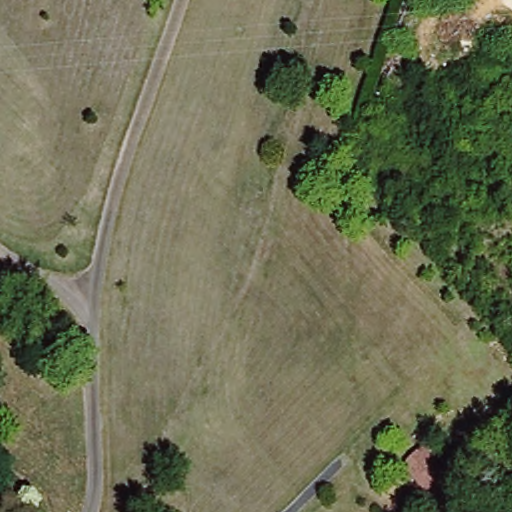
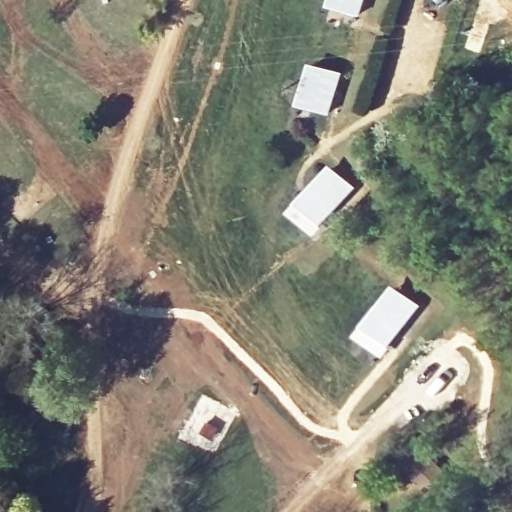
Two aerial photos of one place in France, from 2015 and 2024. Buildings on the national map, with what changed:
new [(326,6),(328,0),(364,0),(360,16),(326,6)]
new [(342,72),(330,113),(295,102),(307,62),(342,72)]
new [(329,163),(355,187),(318,228),(292,204),(329,163)]
new [(418,304),(386,346),(360,325),(393,284),(418,304)]
unchanged [(444,475),(423,497),(398,472),(419,450),(444,475)]
unchanged [(14,512),(0,512),(0,489),(19,507),(14,512)]

